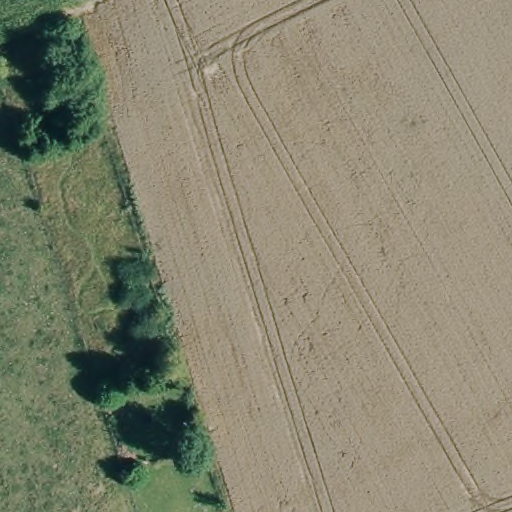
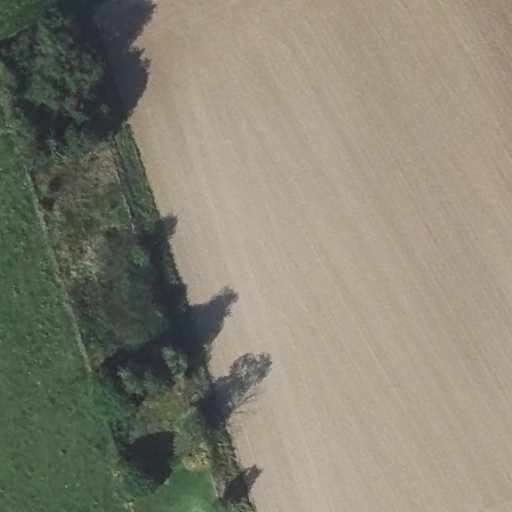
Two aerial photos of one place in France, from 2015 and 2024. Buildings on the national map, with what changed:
[]

